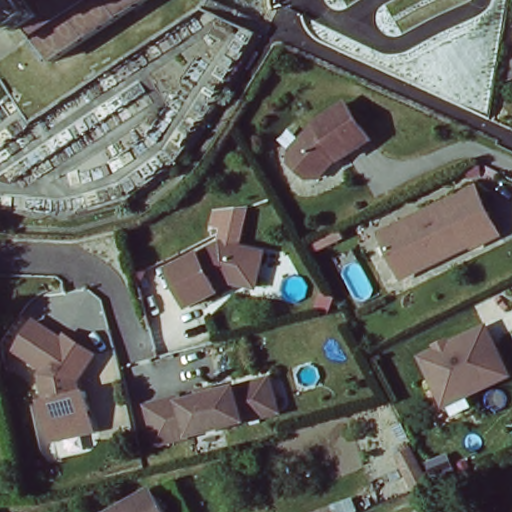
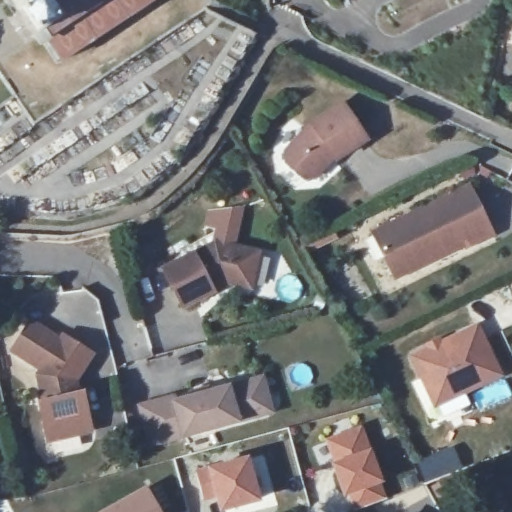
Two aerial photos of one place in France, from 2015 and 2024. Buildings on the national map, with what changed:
unchanged [(15,2),(14,0),(152,0),(56,64),(43,43),(40,45),(35,38),(37,37),(19,10),(17,11),(12,4),(15,2)]
unchanged [(313,121),(343,101),(367,138),(336,157),(333,152),(325,160),(325,164),(315,176),(305,176),(287,160),(286,150),(313,121)]
unchanged [(469,186),(491,233),(465,245),(463,242),(425,260),(423,254),(391,269),(373,231),(469,186)]
unchanged [(215,229),(206,226),(209,210),(245,206),(236,245),(215,240),(214,241),(215,229)]
unchanged [(215,240),(258,250),(249,284),(219,277),(209,282),(212,288),(182,303),(163,265),(215,240)]
unchanged [(9,351),(27,316),(62,335),(43,367),(9,351)]
unchanged [(478,326),(500,374),(436,405),(414,357),(478,326)]
unchanged [(91,356),(74,380),(75,391),(84,390),(88,411),(80,414),(81,432),(50,438),(39,374),(43,367),(62,335),(91,356)]
unchanged [(174,399),(227,386),(261,377),(269,410),(260,413),(149,441),(139,403),(173,394),(174,399)]
new [(363,424),(371,447),(383,483),(386,499),(355,511),(349,494),(344,496),(332,463),(325,439),(363,424)]
new [(249,454),(262,501),(220,512),(218,512),(215,499),(202,503),(193,468),(249,454)]
unchanged [(152,494),(162,512),(119,512),(152,494)]

